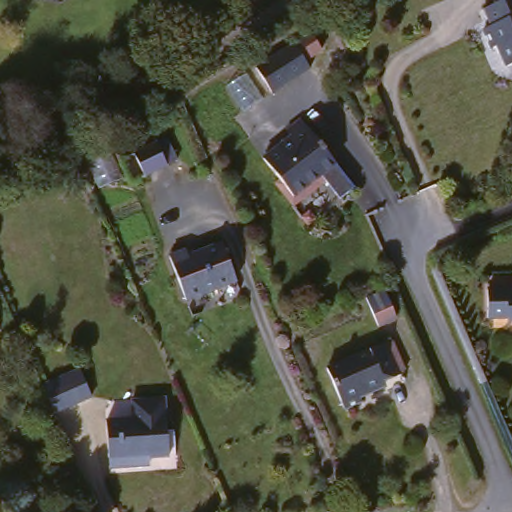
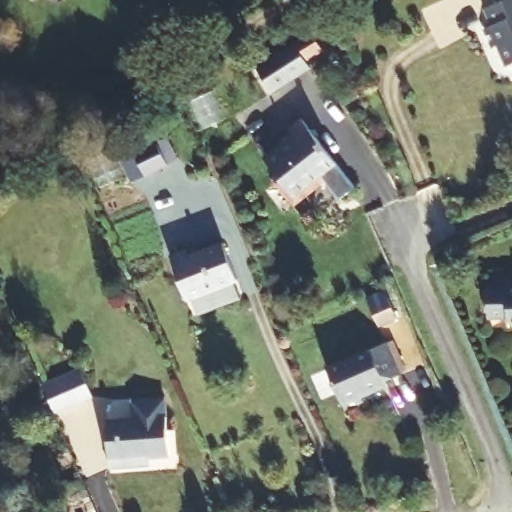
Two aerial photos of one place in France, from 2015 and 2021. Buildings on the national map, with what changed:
unchanged [(503,47),(497,49),(488,32),(501,26),(492,9),(504,3),(510,0),(512,0),(512,63),(503,47)]
unchanged [(277,97),(262,71),(301,47),(316,73),(277,97)]
unchanged [(343,198),(324,177),(297,197),(266,157),(294,137),(291,131),(306,120),(359,187),(343,198)]
unchanged [(146,177),(136,153),(161,144),(172,169),(146,177)]
unchanged [(193,301),(174,258),(197,250),(200,256),(224,245),(239,280),(193,301)]
unchanged [(491,312),(489,283),(512,282),(512,312),(491,312)]
unchanged [(395,292),(408,321),(389,330),(376,301),(395,292)]
unchanged [(0,323),(7,338),(0,341),(0,323)]
unchanged [(387,344),(399,372),(387,378),(386,385),(368,393),(361,396),(362,402),(346,408),(329,367),(369,352),(387,344)]
unchanged [(49,408),(39,384),(74,372),(84,396),(49,408)]
unchanged [(133,458),(133,467),(111,467),(108,422),(134,422),(134,402),(164,401),(168,431),(174,430),(176,453),(133,458)]

